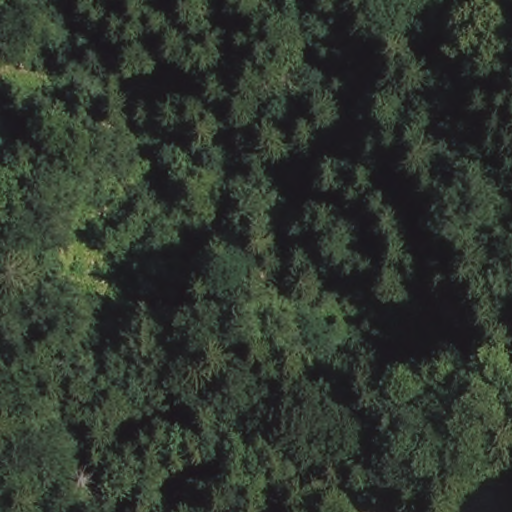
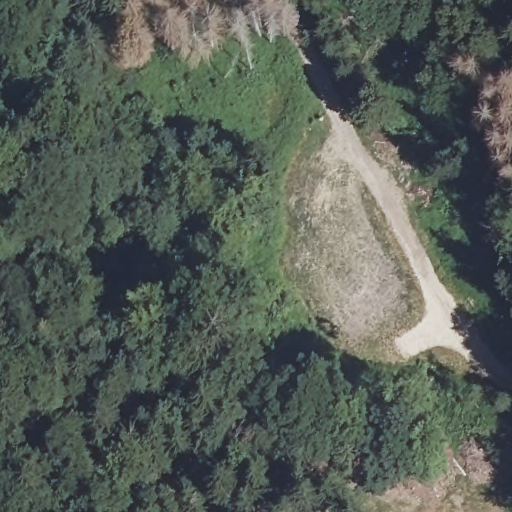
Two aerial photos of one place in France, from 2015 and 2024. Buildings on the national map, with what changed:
unchanged [(421,76),(408,50),(448,29),(461,55),(421,76)]

